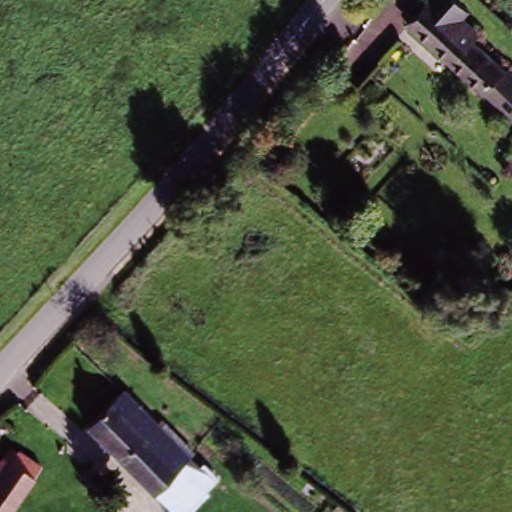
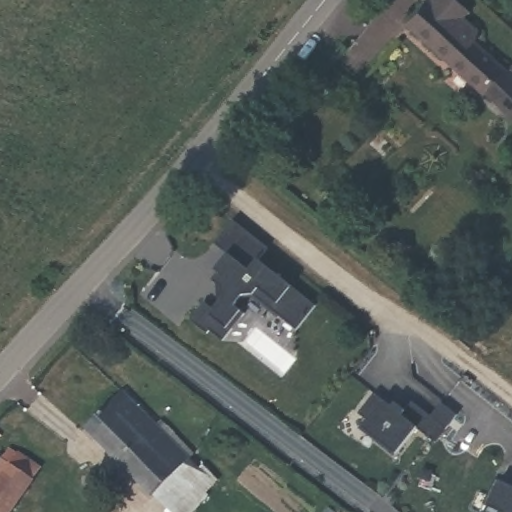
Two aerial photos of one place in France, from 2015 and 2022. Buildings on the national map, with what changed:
unchanged [(465,73),(413,26),(432,4),(435,6),(441,0),(454,0),(474,17),(469,22),(485,36),(482,44),(480,47),(512,75),(512,115),(491,96),(465,73)]
new [(205,302),(215,309),(223,298),(222,288),(213,281),(220,273),(216,270),(228,254),(215,244),(234,220),(269,248),(260,260),(317,306),(297,330),(253,295),(242,299),(235,306),(245,314),(223,341),(210,330),(207,333),(191,320),(205,302)]
unchanged [(162,425),(169,420),(202,456),(195,461),(201,467),(211,462),(222,480),(191,512),(178,512),(162,498),(93,429),(132,392),(162,425)]
new [(430,438),(417,428),(397,454),(362,427),(368,420),(359,413),(375,392),(402,414),(413,401),(432,416),(442,402),(458,415),(447,429),(436,443),(430,438)]
unchanged [(8,512),(0,512),(0,479),(18,452),(40,466),(8,512)]
new [(512,489),(512,512),(481,512),(484,507),(480,504),(492,479),(512,489)]

